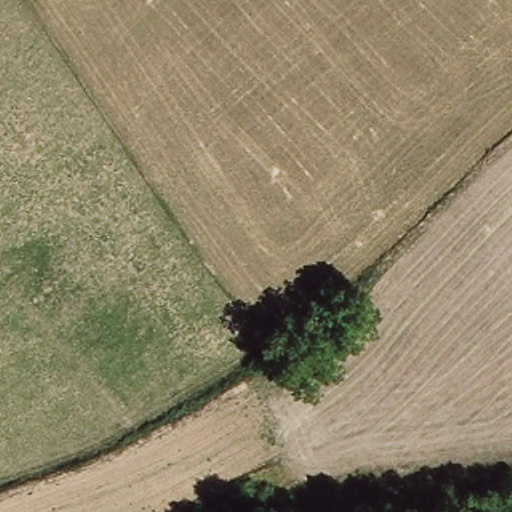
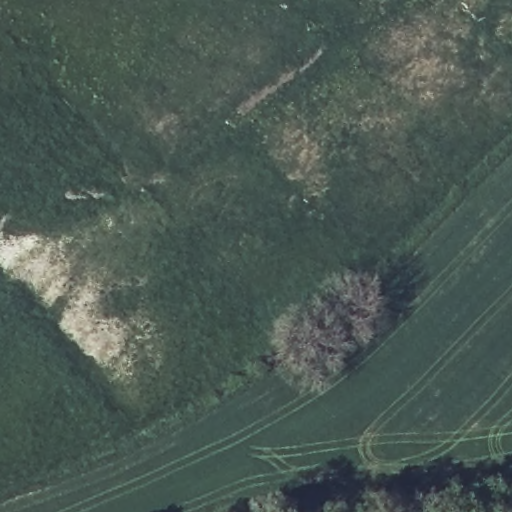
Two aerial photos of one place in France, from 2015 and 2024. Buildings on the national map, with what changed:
unchanged [(512,494),(512,511),(508,512),(505,495),(512,494)]

